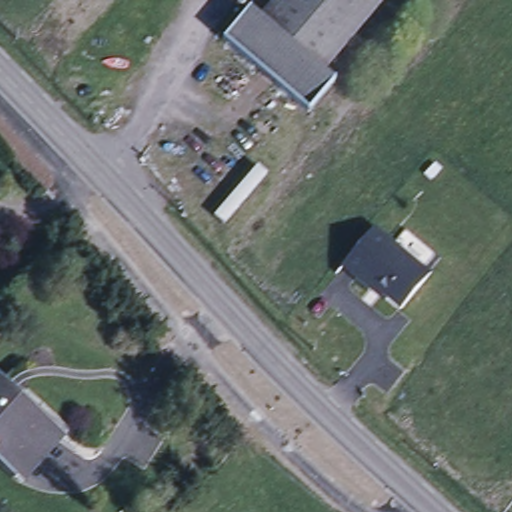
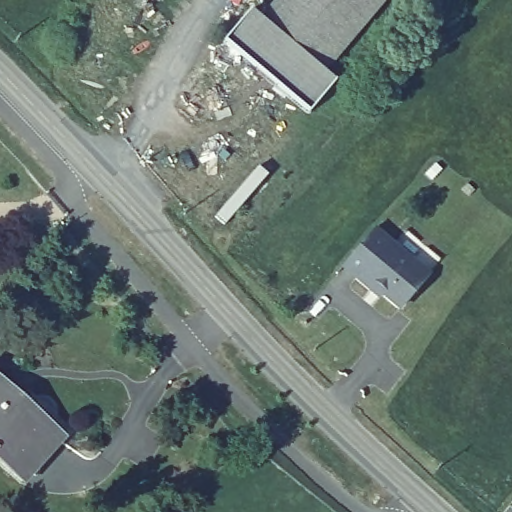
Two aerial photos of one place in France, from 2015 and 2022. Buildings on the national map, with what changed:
unchanged [(252,11),(251,12),(261,21),(279,0),(384,0),(323,74),(333,81),(334,81),(335,82),(308,114),(224,42),(250,10),(252,11)]
unchanged [(393,246),(391,248),(409,262),(410,260),(427,275),(400,307),(383,293),(385,291),(375,283),(370,288),(357,276),(358,275),(344,263),(373,229),(393,246)]
unchanged [(25,479),(11,466),(0,457),(0,386),(2,387),(5,383),(16,393),(13,397),(47,427),(61,440),(25,479)]

